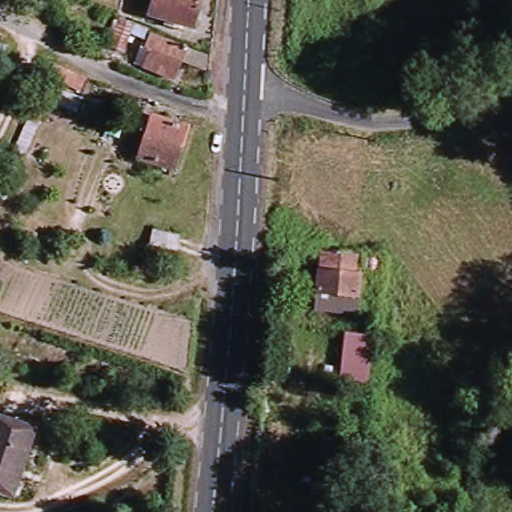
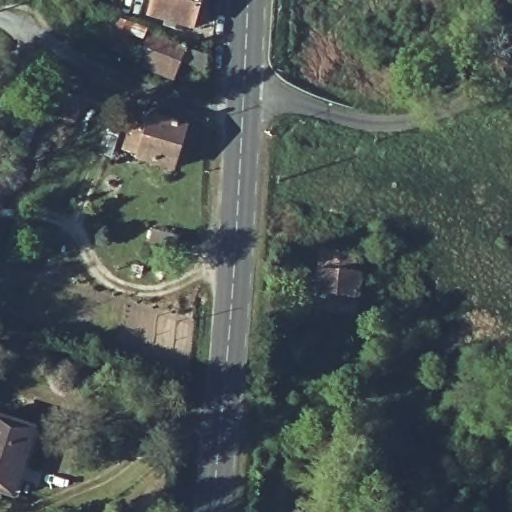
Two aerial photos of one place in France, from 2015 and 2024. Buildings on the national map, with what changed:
unchanged [(150,16),(155,0),(196,0),(188,27),(150,16)]
unchanged [(126,37),(117,56),(102,50),(112,22),(138,31),(141,37),(137,40),(126,37)]
unchanged [(136,67),(146,34),(180,50),(170,78),(136,67)]
unchanged [(22,130),(56,61),(88,76),(83,87),(62,78),(38,137),(22,130)]
unchanged [(77,110),(61,103),(68,89),(84,97),(77,110)]
unchanged [(189,129),(177,170),(144,160),(127,154),(132,136),(139,138),(142,129),(153,132),(156,120),(189,129)]
unchanged [(178,247),(152,238),(158,219),(184,227),(178,247)]
unchanged [(318,281),(321,259),(356,263),(355,279),(358,280),(356,304),(312,299),(313,281),(318,281)]
unchanged [(372,336),(369,383),(339,380),(343,333),(372,336)]
unchanged [(28,433),(5,498),(0,497),(0,423),(28,433)]
unchanged [(336,471),(323,470),(327,438),(340,439),(336,471)]

